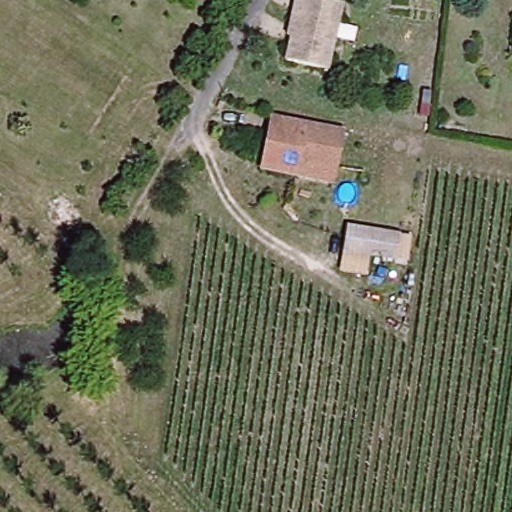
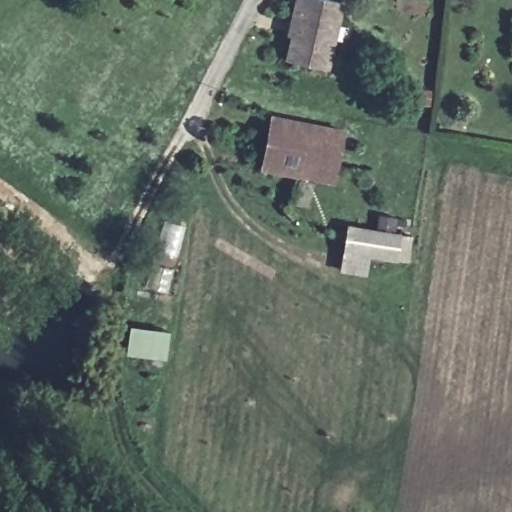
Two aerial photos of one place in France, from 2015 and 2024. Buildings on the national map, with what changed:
unchanged [(326,72),(284,62),(299,0),(313,0),(341,6),(326,72)]
unchanged [(295,179),(259,173),(269,122),(341,136),(334,174),(332,186),(295,179)]
unchanged [(349,224),(401,230),(398,255),(348,249),(349,224)]
new [(126,327),(166,332),(163,359),(123,354),(126,327)]

